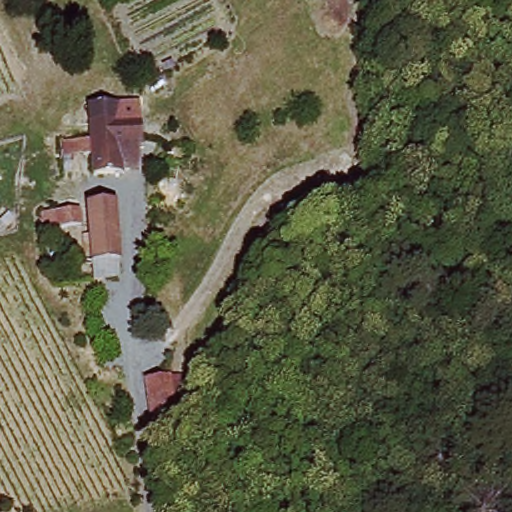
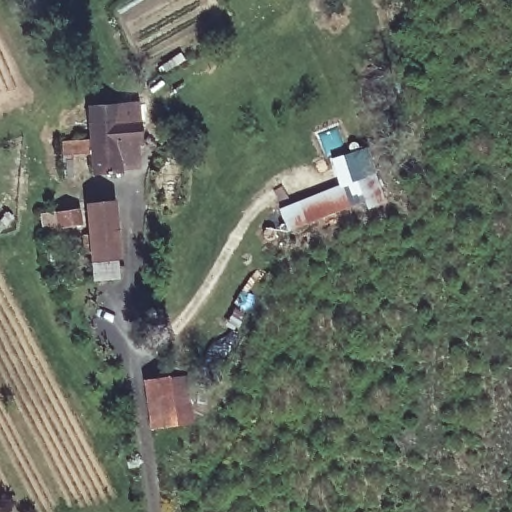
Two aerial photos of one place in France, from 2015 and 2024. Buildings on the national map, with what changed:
unchanged [(146,118),(147,142),(144,142),(146,157),(128,158),(128,171),(100,171),(97,151),(68,152),(68,136),(95,135),(95,115),(95,105),(121,103),(123,114),(123,119),(146,118)]
new [(366,145),(376,172),(341,184),(329,158),(366,145)]
new [(376,172),(385,204),(365,210),(362,202),(351,207),(341,184),(376,172)]
new [(341,184),(351,207),(286,231),(277,207),(341,184)]
unchanged [(128,257),(125,262),(125,277),(97,278),(95,202),(123,201),(128,257)]
unchanged [(88,222),(67,225),(66,210),(86,207),(88,222)]
unchanged [(148,380),(172,377),(176,425),(153,427),(148,380)]

